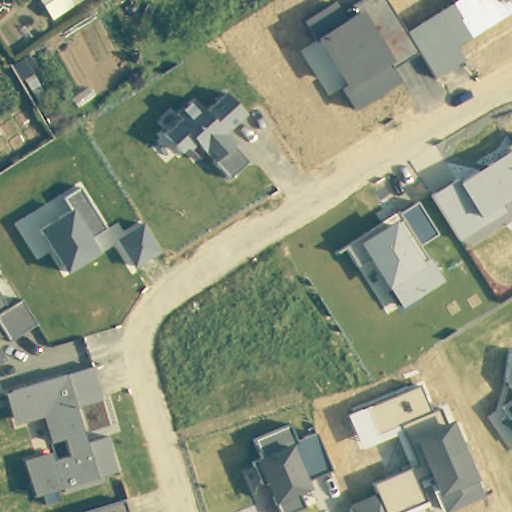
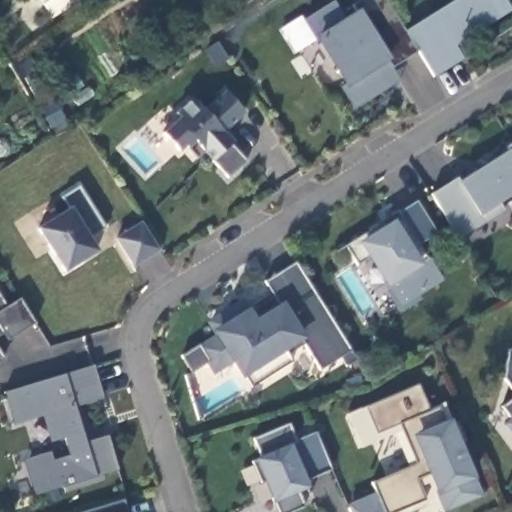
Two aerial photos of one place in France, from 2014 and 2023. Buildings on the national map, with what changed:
unchanged [(48,0),(76,0),(57,13),(48,0)]
unchanged [(253,0),(247,3),(245,0),(253,0)]
unchanged [(344,84),(313,35),(303,20),(332,1),(346,20),(358,12),(353,6),(363,0),(385,0),(405,32),(456,0),(511,0),(512,5),(512,13),(456,47),(463,60),(434,80),(418,51),(391,68),(399,82),(353,110),(339,87),(344,84)]
unchanged [(204,153),(197,159),(187,148),(180,154),(163,135),(183,116),(178,111),(191,97),(206,111),(227,92),(245,111),(223,131),(234,144),(248,161),(228,178),(204,153)]
unchanged [(457,178),(461,182),(508,150),(506,147),(512,144),(512,197),(500,205),(505,211),(460,239),(430,195),(457,178)]
unchanged [(39,229),(68,209),(62,197),(77,185),(103,228),(90,237),(99,253),(67,272),(39,229)]
unchanged [(368,259),(357,265),(346,246),(395,215),(416,202),(435,233),(420,244),(442,280),(400,308),(368,259)]
unchanged [(117,239),(143,223),(160,251),(135,267),(117,239)]
new [(344,365),(339,356),(321,367),(305,338),(285,351),(292,361),(251,386),(246,376),(241,378),(231,361),(213,374),(206,364),(193,372),(182,356),(211,331),(206,323),(242,298),(250,309),(255,319),(281,303),(266,281),(295,263),(349,350),(355,359),(344,365)]
unchanged [(6,307),(20,298),(34,322),(7,338),(3,332),(0,335),(0,296),(6,307)]
unchanged [(512,350),(512,386),(506,377),(512,350)]
unchanged [(4,358),(0,362),(0,352),(4,358)]
unchanged [(22,460),(50,452),(52,461),(69,456),(64,439),(51,442),(43,417),(14,425),(5,392),(93,367),(101,399),(77,406),(87,444),(108,437),(118,470),(101,474),(103,481),(64,493),(63,489),(35,497),(22,460)]
unchanged [(431,487),(423,491),(426,499),(399,512),(352,512),(348,504),(374,493),(370,484),(409,467),(394,434),(360,448),(345,415),(417,387),(425,409),(441,403),(448,420),(477,483),(482,496),(443,512),(431,487)]
unchanged [(511,415),(503,405),(512,398),(512,430),(505,420),(511,415)]
unchanged [(273,502),(254,462),(264,458),(255,439),(287,425),(293,442),(315,433),(329,469),(307,479),(311,489),(298,494),(303,506),(292,512),(280,512),(273,502)]
unchanged [(123,500),(128,512),(84,512),(123,500)]

